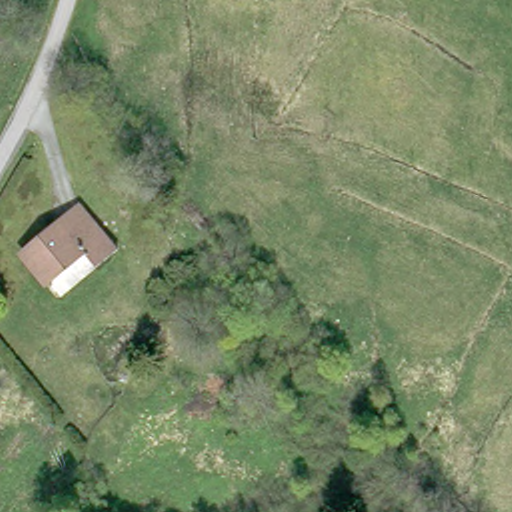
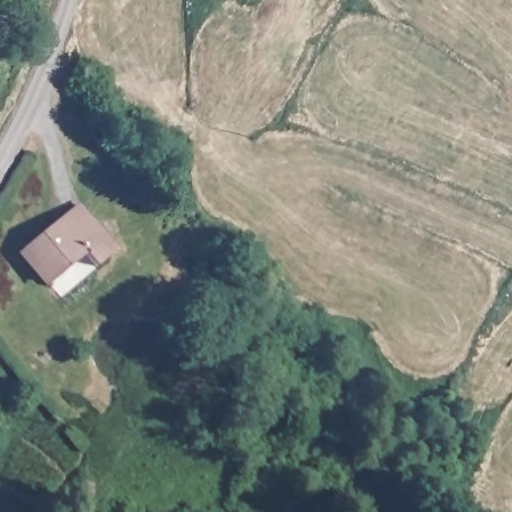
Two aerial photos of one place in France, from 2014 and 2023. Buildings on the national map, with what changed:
unchanged [(91,270),(80,257),(45,283),(20,253),(59,224),(80,207),(91,221),(116,252),(91,270)]

